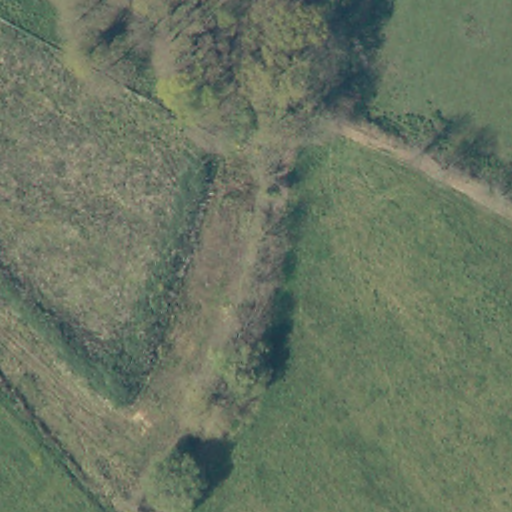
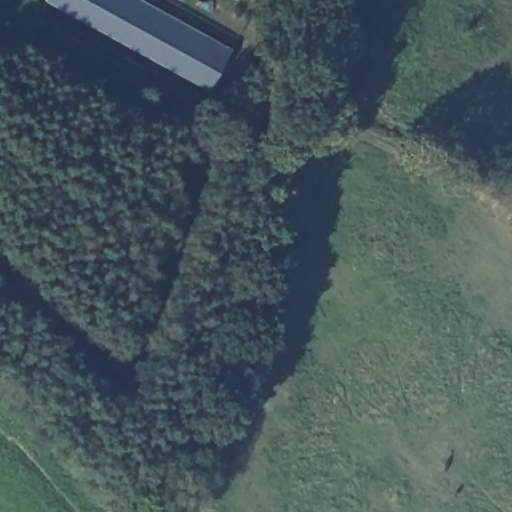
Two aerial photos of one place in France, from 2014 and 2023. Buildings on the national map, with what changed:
new [(208,92),(44,4),(44,0),(139,0),(232,50),(208,92)]

